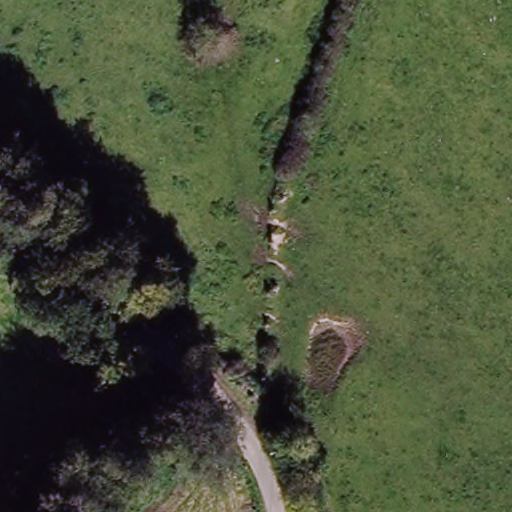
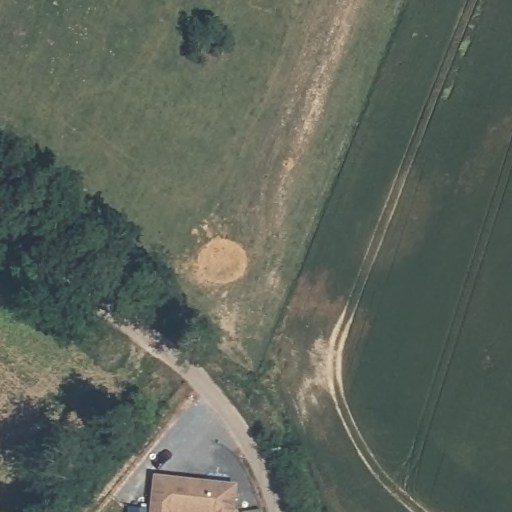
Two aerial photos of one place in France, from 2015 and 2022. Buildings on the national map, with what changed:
new [(233,512),(151,512),(154,477),(235,485),(233,512)]

